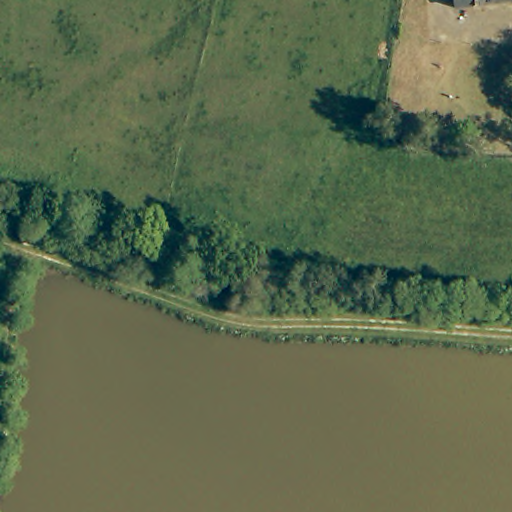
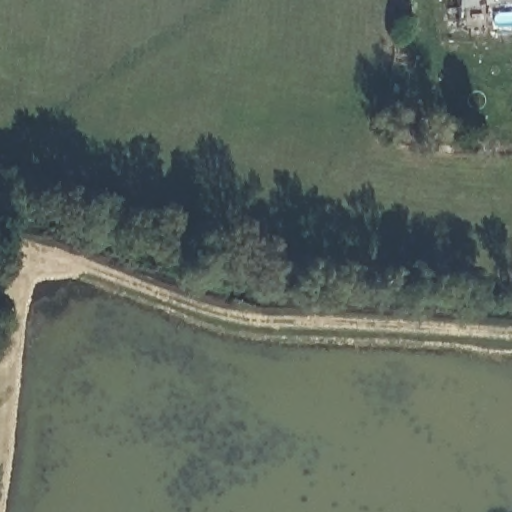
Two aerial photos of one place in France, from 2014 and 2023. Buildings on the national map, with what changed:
unchanged [(459,0),(512,0),(512,1),(460,7),(459,0)]

